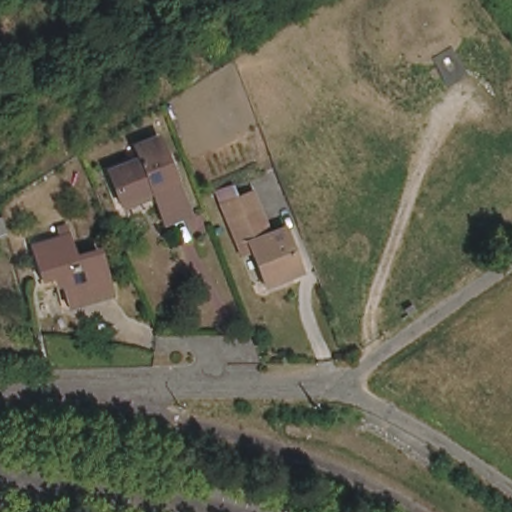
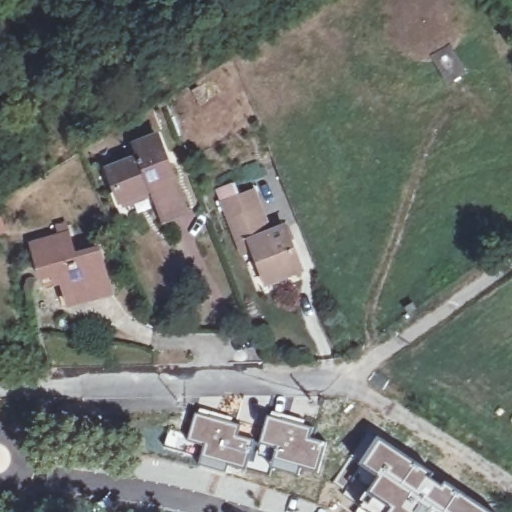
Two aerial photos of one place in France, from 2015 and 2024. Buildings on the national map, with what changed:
unchanged [(122,195),(110,164),(142,152),(137,139),(159,131),(188,207),(166,215),(157,192),(126,204),(122,195)]
unchanged [(241,245),(230,216),(224,202),(254,190),(260,205),(271,232),(285,226),(302,268),(267,281),(254,250),(244,254),(241,245)]
unchanged [(1,216),(5,230),(0,231),(0,216),(1,216)]
unchanged [(70,300),(67,293),(63,278),(55,280),(53,270),(43,273),(33,240),(62,231),(59,221),(68,220),(77,252),(101,245),(111,281),(89,288),(91,294),(70,300)]
unchanged [(62,404),(81,404),(81,417),(62,416),(62,404)]
new [(238,434),(253,438),(249,456),(253,457),(254,453),(272,458),(270,467),(268,474),(229,464),(226,472),(199,465),(205,443),(188,439),(198,409),(241,422),(238,434)]
new [(269,410),(303,419),(302,423),(312,425),(309,438),(327,442),(317,473),(302,467),(300,475),(270,467),(272,458),(275,446),(261,443),(269,410)]
new [(186,438),(188,439),(185,451),(164,445),(169,430),(186,435),(186,438)]
new [(354,511),(376,476),(358,464),(377,437),(463,492),(492,512),(355,512),(354,511)]

